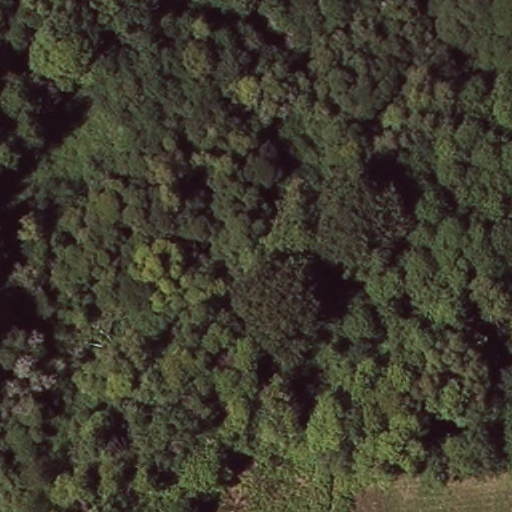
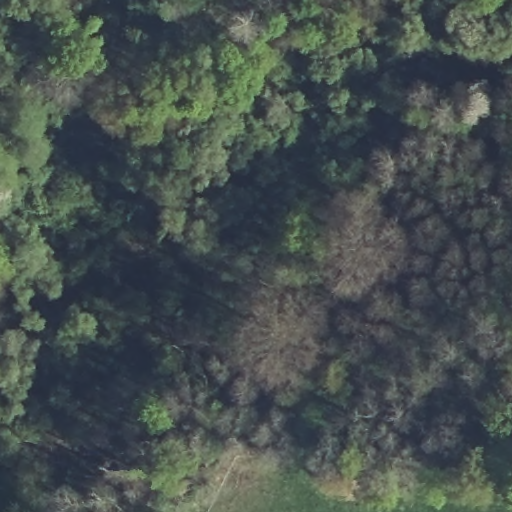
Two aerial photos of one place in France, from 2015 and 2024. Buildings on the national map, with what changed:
[]

